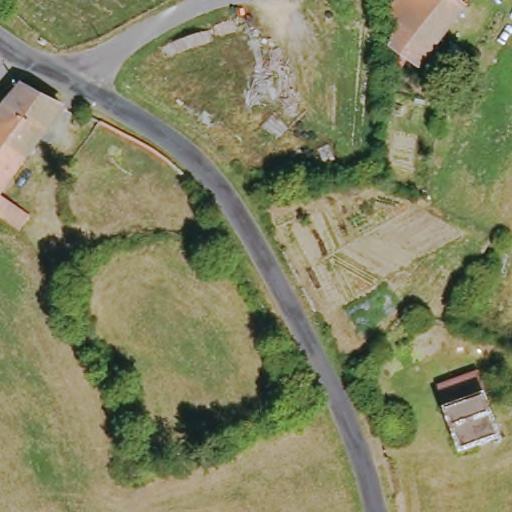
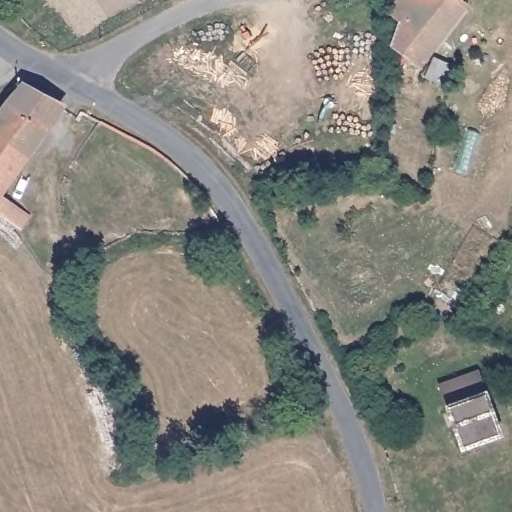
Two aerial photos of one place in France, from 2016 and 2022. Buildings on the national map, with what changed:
unchanged [(394,19),(388,17),(388,6),(390,0),(457,0),(459,1),(418,62),(400,54),(398,62),(382,58),(394,19)]
unchanged [(2,108),(24,82),(60,103),(0,184),(0,108),(2,108)]
unchanged [(0,217),(0,194),(21,211),(11,224),(0,217)]
unchanged [(464,455),(455,429),(450,412),(444,393),(480,380),(487,399),(492,416),(502,440),(464,455)]

